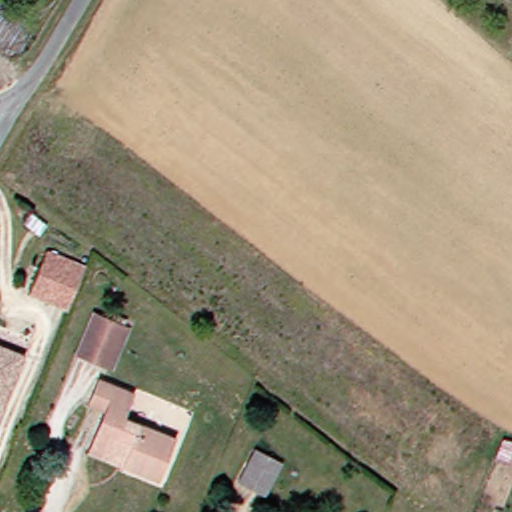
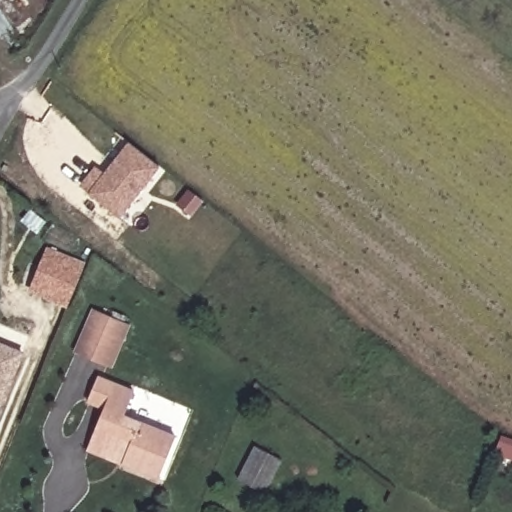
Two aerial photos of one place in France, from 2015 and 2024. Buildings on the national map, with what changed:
new [(126,144),(156,167),(117,218),(86,195),(126,144)]
unchanged [(38,263),(42,251),(79,265),(70,288),(65,305),(41,296),(27,291),(38,263)]
unchanged [(94,312),(126,325),(109,365),(77,351),(94,312)]
unchanged [(1,408),(0,408),(0,350),(21,359),(1,408)]
unchanged [(91,445),(104,413),(87,407),(97,382),(132,396),(123,420),(173,441),(157,482),(120,468),(87,455),(91,445)]
new [(503,438),(512,441),(512,459),(498,454),(503,438)]
unchanged [(280,460),(264,493),(236,480),(253,446),(280,460)]

